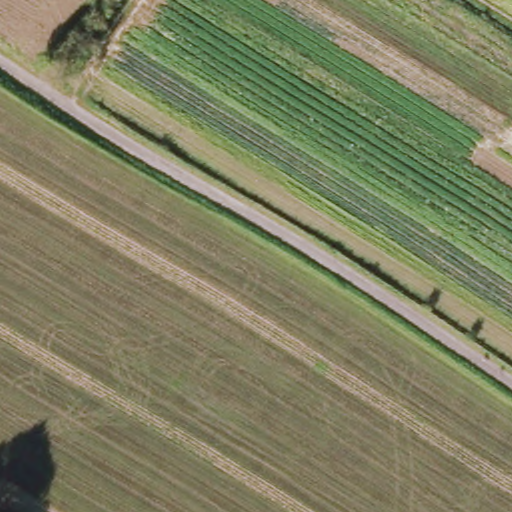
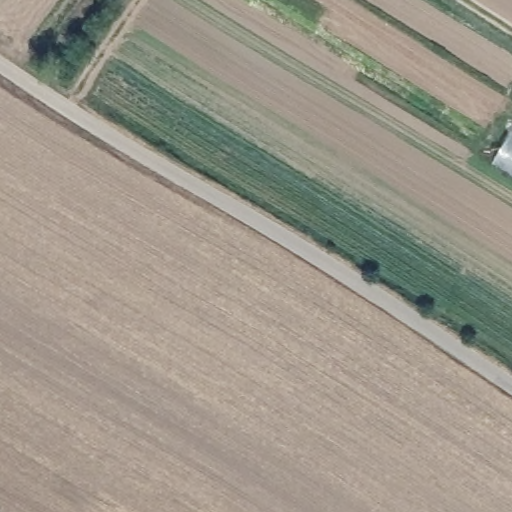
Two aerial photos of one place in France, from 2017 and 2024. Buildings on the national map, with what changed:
new [(494,161),(512,130),(512,172),(494,161)]

